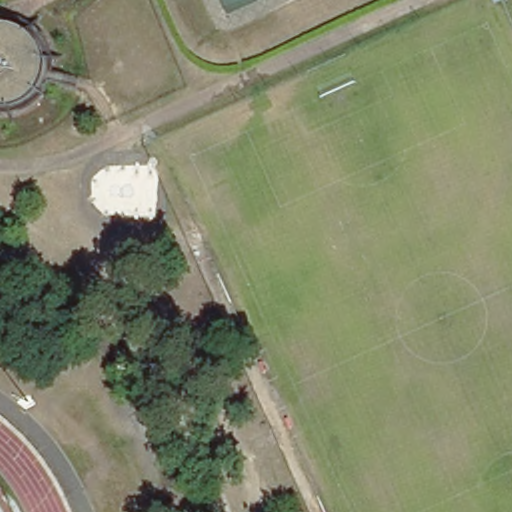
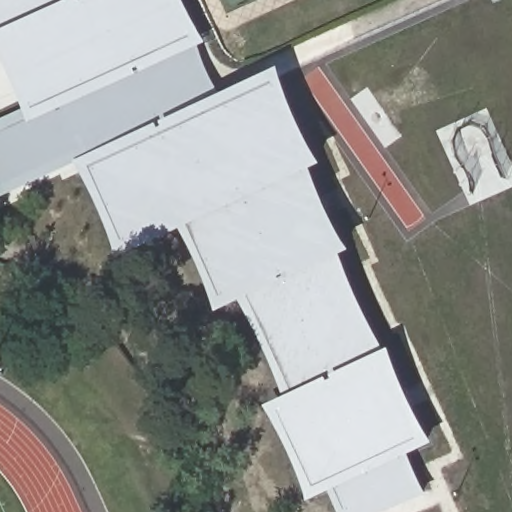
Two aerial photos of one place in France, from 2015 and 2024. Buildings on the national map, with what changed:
new [(201,46),(223,94),(280,69),(324,165),(314,171),(352,252),(344,256),(386,350),(391,348),(435,444),(410,455),(428,495),(389,512),(339,512),(330,492),(308,502),(266,406),(285,396),(242,301),(217,314),(182,230),(119,260),(79,162),(0,198),(0,121),(25,110),(0,56),(0,0),(188,0),(207,44),(201,46)]
demolished [(4,37),(6,37),(8,39),(11,39),(13,40),(15,41),(17,42),(19,44),(20,45),(22,46),(24,48),(25,50),(27,51),(28,54),(29,55),(30,57),(31,60),(32,61),(32,64),(33,66),(33,69),(33,70),(33,73),(33,75),(33,77),(33,80),(32,82),(31,84),(31,86),(30,89),(29,90),(28,92),(26,94),(25,96),(23,97),(22,99),(20,100),(18,102),(16,104),(14,105),(12,105),(10,106),(8,107),(6,107),(3,108),(1,109),(0,109),(0,36),(2,37),(4,37)]

